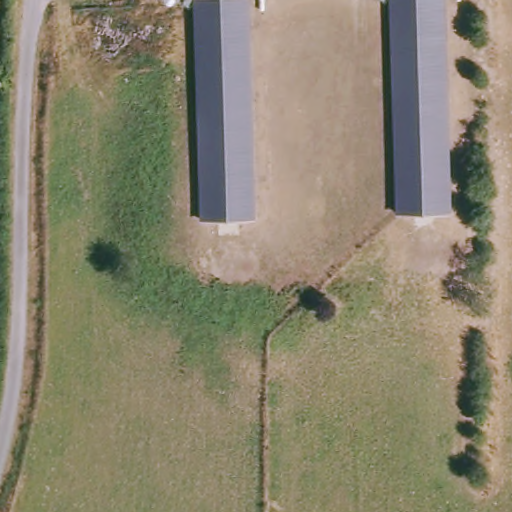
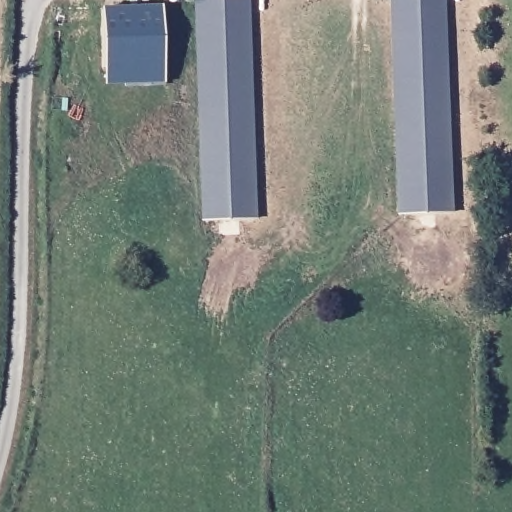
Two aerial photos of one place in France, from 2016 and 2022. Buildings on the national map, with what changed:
unchanged [(198,0),(248,0),(255,214),(205,217),(198,0)]
unchanged [(395,0),(445,0),(452,209),(402,212),(395,0)]
new [(161,5),(162,84),(103,86),(100,6),(161,5)]

